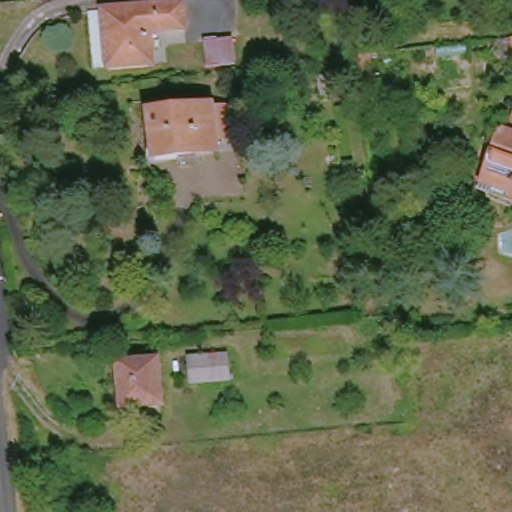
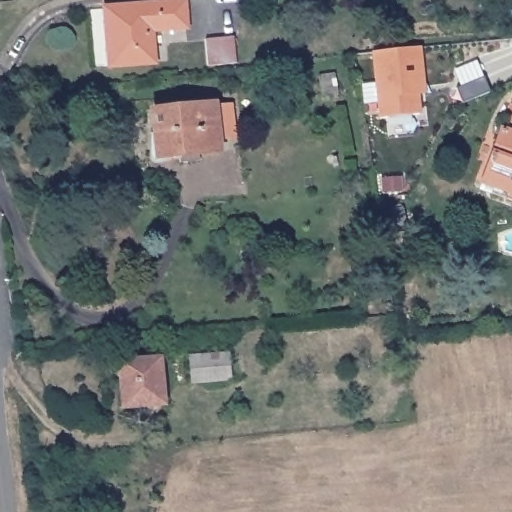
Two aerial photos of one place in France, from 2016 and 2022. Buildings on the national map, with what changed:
unchanged [(191,30),(155,36),(159,68),(115,74),(108,16),(187,6),(191,30)]
new [(370,52),(420,47),(425,94),(420,94),(420,113),(377,118),(370,52)]
unchanged [(246,106),(255,154),(225,158),(158,166),(154,110),(223,103),(246,106)]
unchanged [(494,191),(495,184),(488,179),(509,128),(512,129),(512,199),(494,191)]
unchanged [(1,168),(0,161),(0,149),(15,149),(16,165),(1,168)]
unchanged [(234,356),(236,383),(198,386),(197,359),(234,356)]
unchanged [(166,409),(125,412),(122,367),(163,363),(166,409)]

